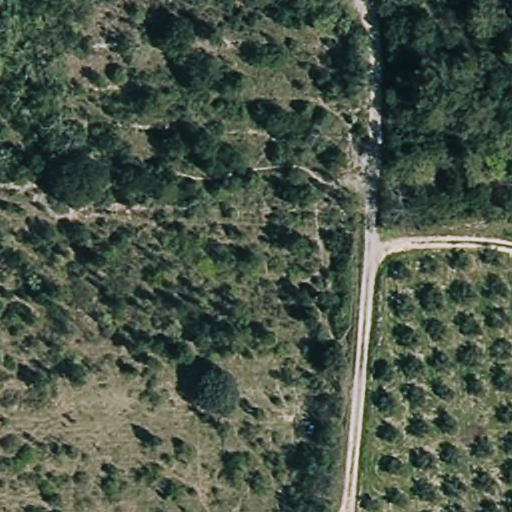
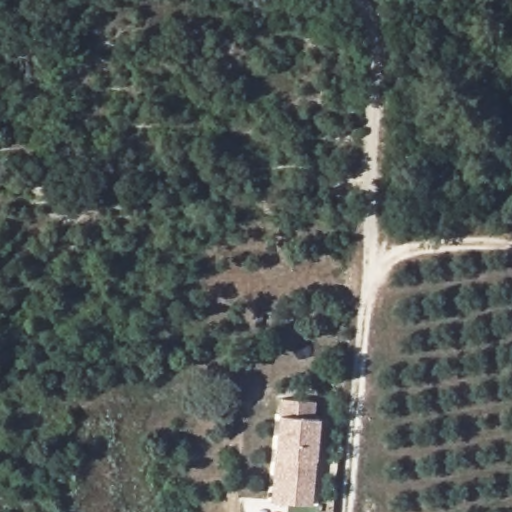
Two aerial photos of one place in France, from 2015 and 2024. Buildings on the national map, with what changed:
new [(291,392),(324,397),(321,413),(327,415),(315,501),(298,500),(276,496),(280,470),(291,392)]

